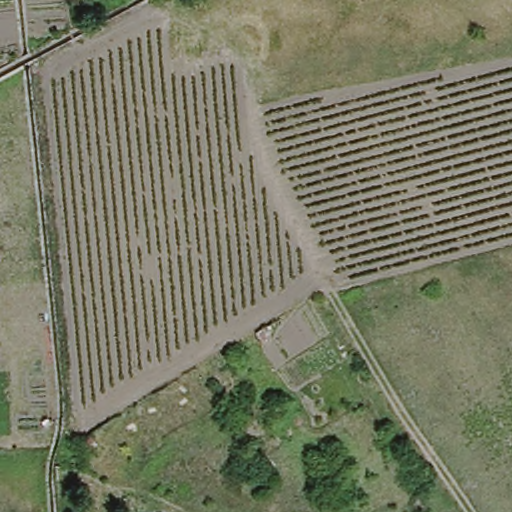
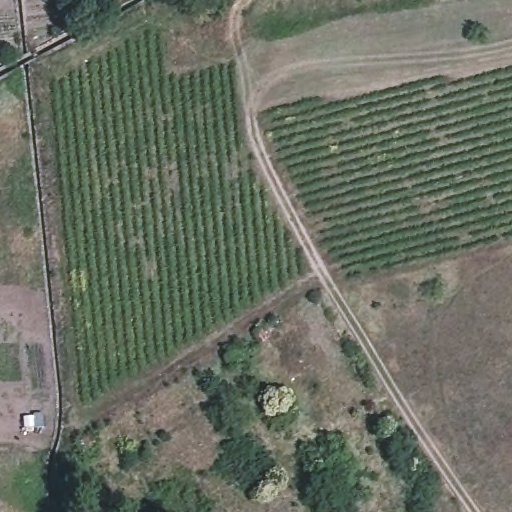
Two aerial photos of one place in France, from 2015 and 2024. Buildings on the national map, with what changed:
unchanged [(73,468),(74,476),(57,477),(59,469),(73,468)]

